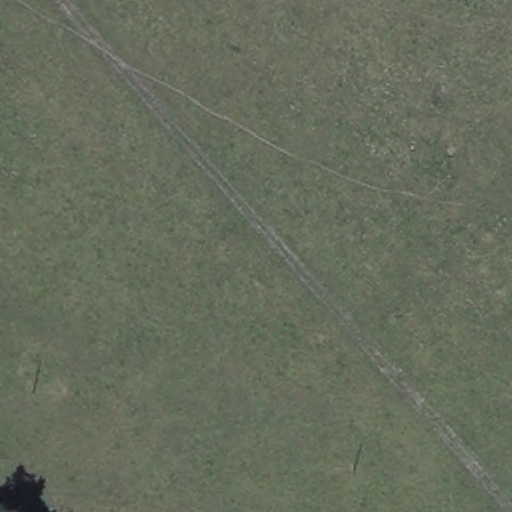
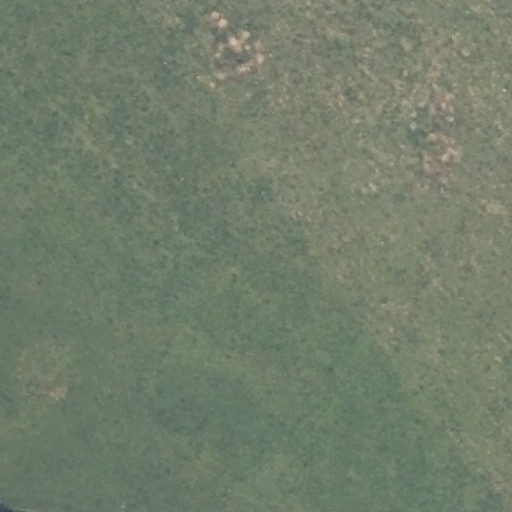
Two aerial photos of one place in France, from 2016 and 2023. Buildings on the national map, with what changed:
[]

